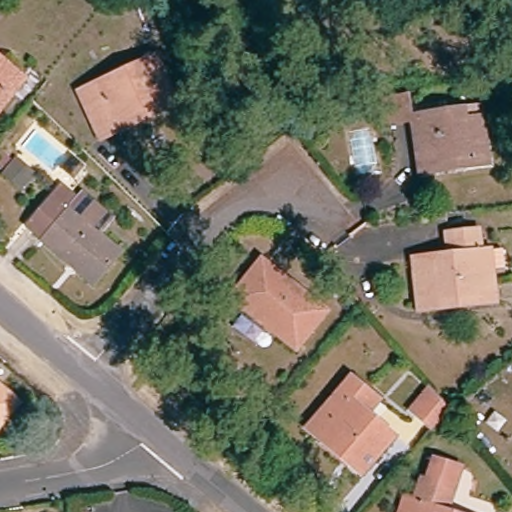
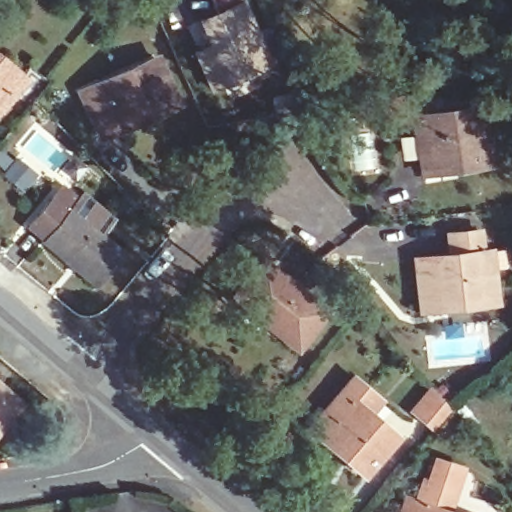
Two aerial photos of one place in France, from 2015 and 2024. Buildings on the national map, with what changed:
new [(200,21),(216,15),(209,0),(240,0),(267,61),(256,66),(257,70),(212,91),(196,54),(212,46),(200,21)]
unchanged [(102,137),(81,91),(156,58),(178,105),(159,113),(121,129),(102,137)]
unchanged [(0,111),(0,61),(24,81),(0,111)]
unchanged [(417,174),(411,129),(385,133),(381,105),(407,100),(411,125),(415,124),(479,114),(487,171),(463,175),(419,182),(417,174)]
unchanged [(15,161),(33,177),(22,191),(3,175),(15,161)]
unchanged [(92,291),(67,270),(68,269),(42,246),(44,244),(28,230),(62,191),(77,204),(83,198),(113,223),(100,239),(122,258),(99,285),(97,285),(94,290),(92,291)]
unchanged [(435,311),(413,313),(408,263),(443,259),(441,237),(472,233),(475,254),(497,251),(499,269),(486,271),(490,305),(435,311)]
unchanged [(261,263),(323,314),(295,351),(281,340),(283,335),(247,307),(244,311),(230,299),(261,263)]
unchanged [(351,382),(376,403),(365,416),(392,440),(360,478),(317,441),(308,433),(323,416),(340,395),(351,382)]
unchanged [(413,415),(404,407),(425,385),(431,393),(448,412),(433,432),(413,415)]
unchanged [(0,425),(0,388),(19,404),(16,407),(0,425)]
unchanged [(407,509),(417,511),(424,485),(431,485),(437,465),(463,472),(452,512),(406,512),(407,509)]

